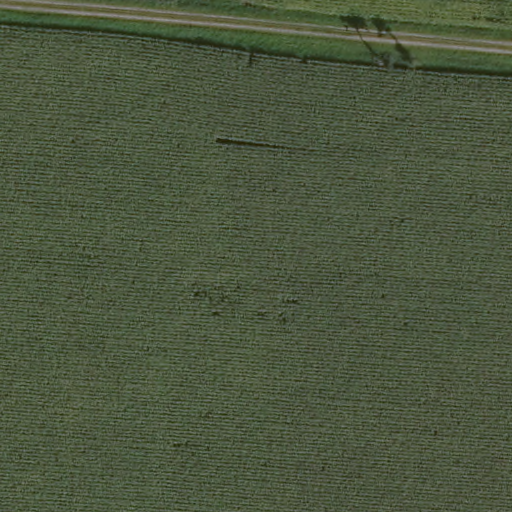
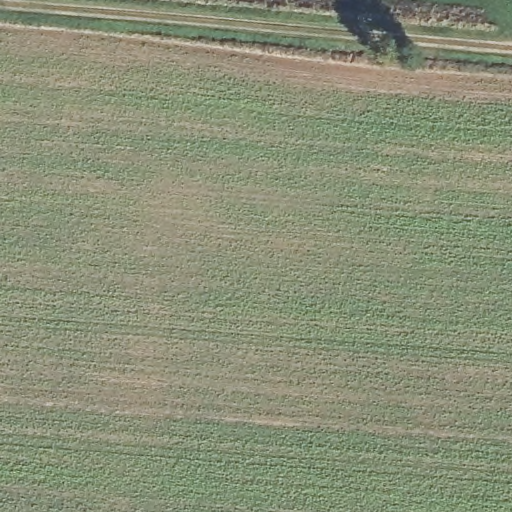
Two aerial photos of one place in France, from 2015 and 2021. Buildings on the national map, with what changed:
[]

